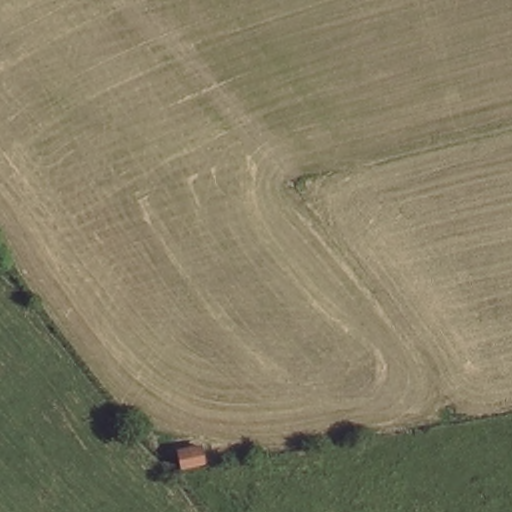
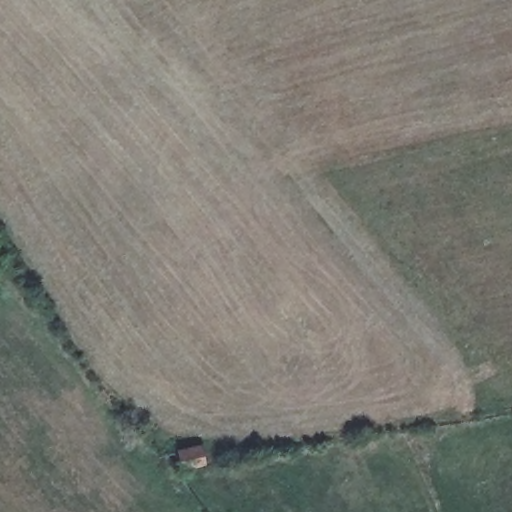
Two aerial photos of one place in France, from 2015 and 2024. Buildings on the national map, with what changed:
unchanged [(206,464),(181,470),(178,452),(201,447),(206,464)]

